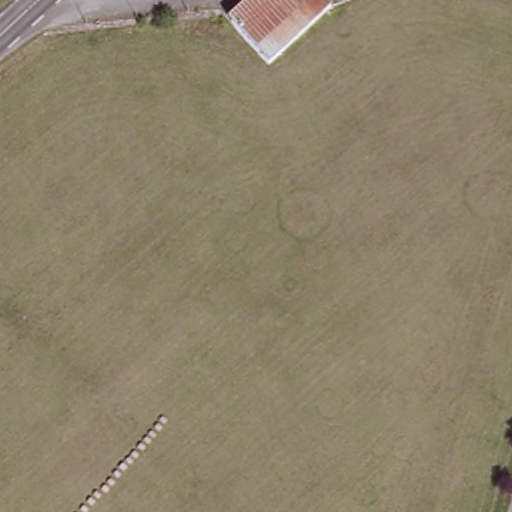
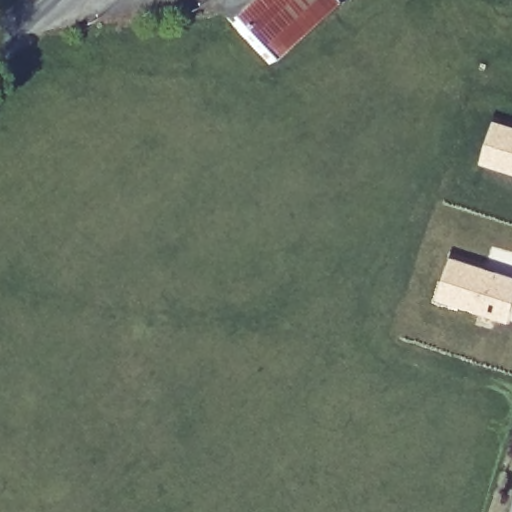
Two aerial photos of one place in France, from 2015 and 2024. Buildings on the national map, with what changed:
unchanged [(332,7),(269,65),(232,24),(258,0),(326,0),(332,7)]
new [(495,118),(512,124),(512,172),(480,161),(495,118)]
new [(451,255),(512,274),(512,312),(509,322),(438,298),(451,255)]

